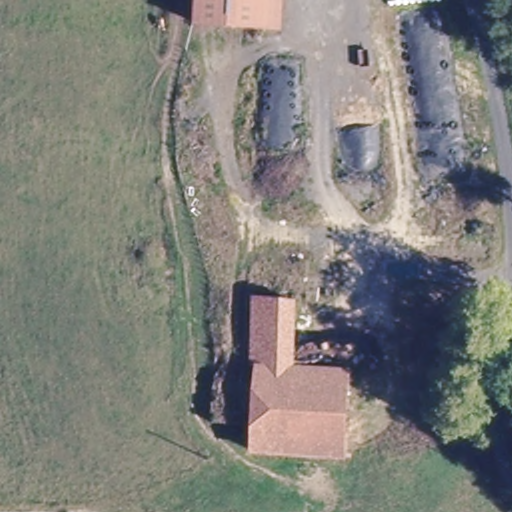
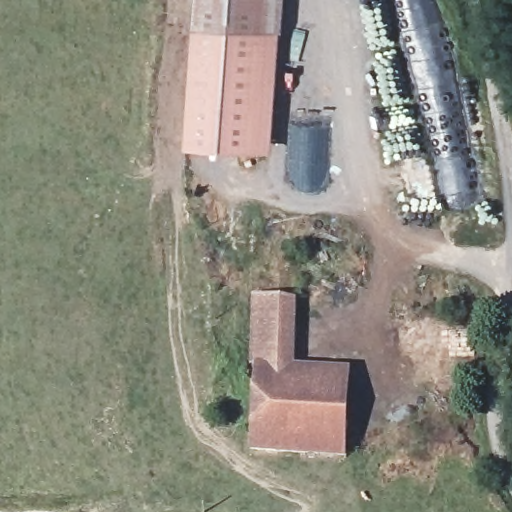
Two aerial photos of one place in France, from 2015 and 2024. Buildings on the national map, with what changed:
new [(185,147),(183,136),(188,23),(196,25),(197,0),(263,0),(283,0),(281,30),(261,29),(277,30),(270,151),(185,147)]
demolished [(196,25),(197,0),(263,0),(261,29),(196,25)]
unchanged [(256,313),(283,312),(279,366),(254,365),(256,313)]
unchanged [(343,453),(250,450),(254,365),(279,366),(349,372),(346,439),(343,453)]

